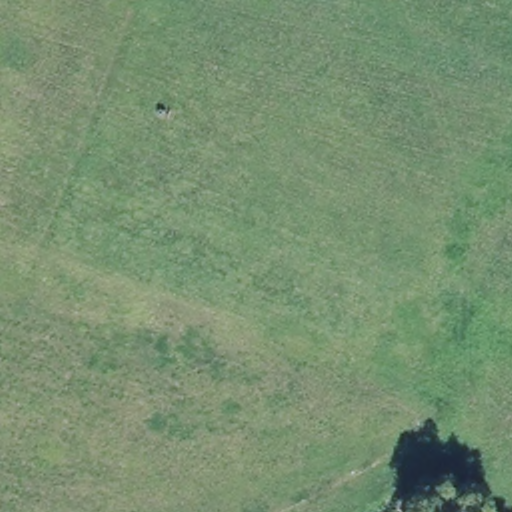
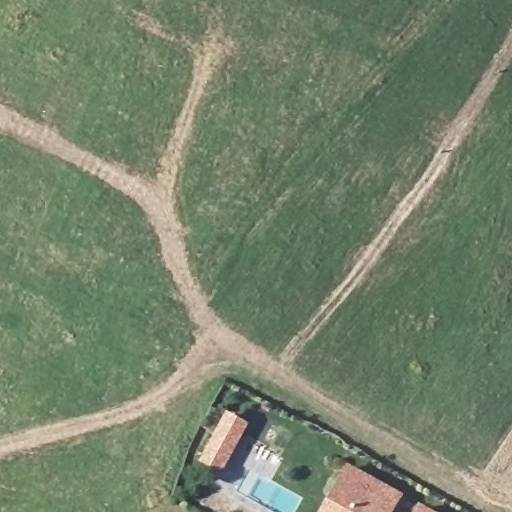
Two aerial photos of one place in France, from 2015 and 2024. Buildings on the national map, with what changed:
new [(226,420),(241,429),(217,473),(202,464),(226,420)]
new [(348,463),(404,494),(393,512),(322,512),(348,463)]
new [(421,503),(437,512),(416,512),(421,503)]

